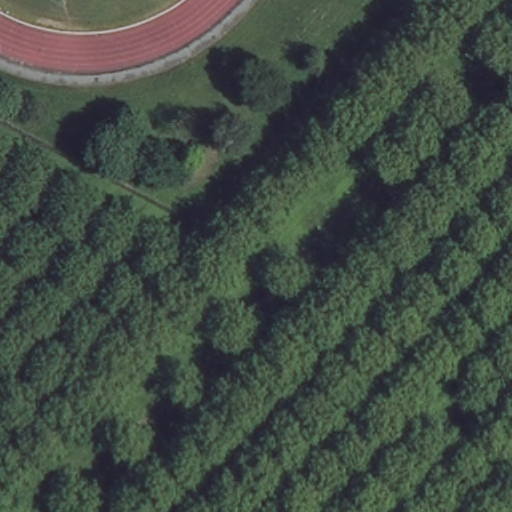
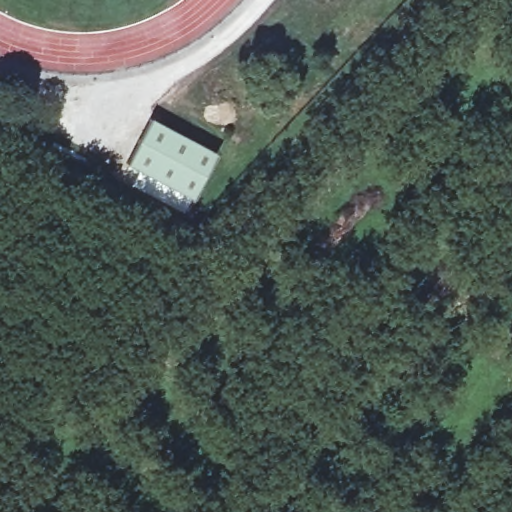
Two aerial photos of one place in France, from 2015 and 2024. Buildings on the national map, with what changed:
new [(223,157),(197,206),(129,169),(154,120),(223,157)]

